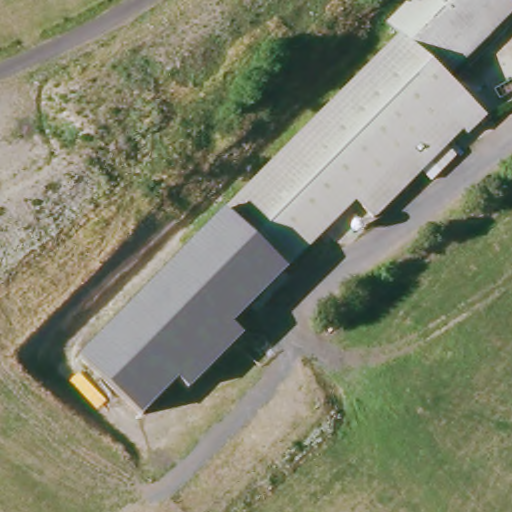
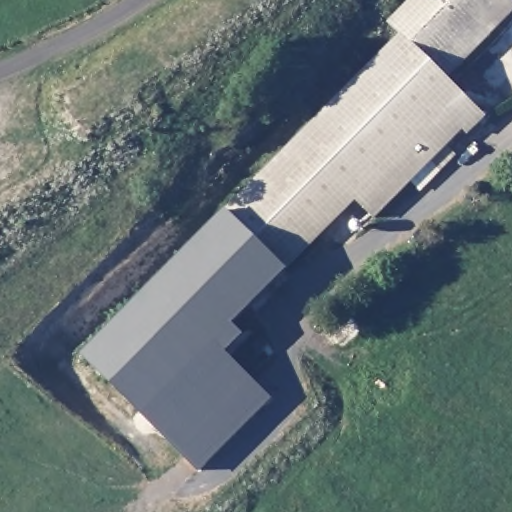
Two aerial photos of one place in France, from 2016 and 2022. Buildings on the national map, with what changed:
unchanged [(512,5),(512,7),(443,73),(483,112),(466,131),(460,126),(371,218),(353,197),(284,269),(223,210),(394,31),(384,22),(405,0),(508,0),(512,5)]
unchanged [(79,355),(223,210),(284,269),(233,326),(241,337),(189,389),(179,378),(141,415),(79,355)]
new [(179,378),(189,389),(224,354),(269,400),(197,473),(141,415),(179,378)]

